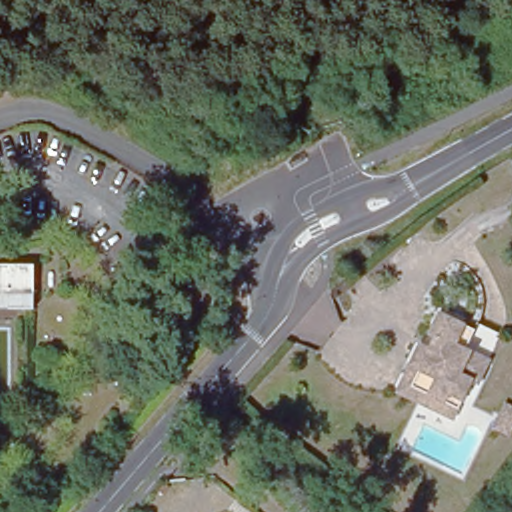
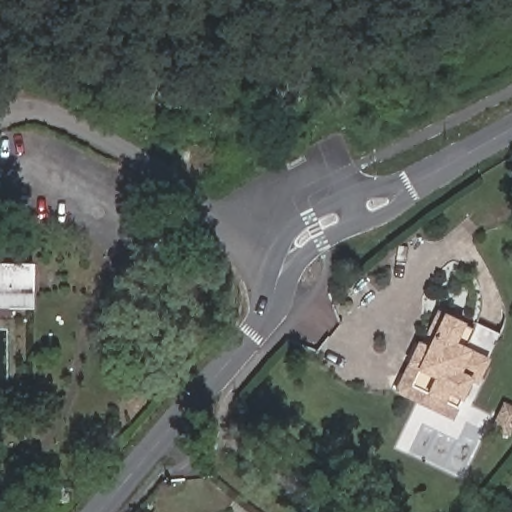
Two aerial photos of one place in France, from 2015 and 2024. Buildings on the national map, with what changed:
unchanged [(33,259),(30,308),(0,308),(0,258),(33,259)]
unchanged [(414,335),(425,340),(441,309),(473,329),(466,346),(486,358),(473,388),(463,384),(448,416),(389,391),(414,335)]
unchanged [(509,409),(512,411),(512,422),(502,434),(493,427),(509,409)]

